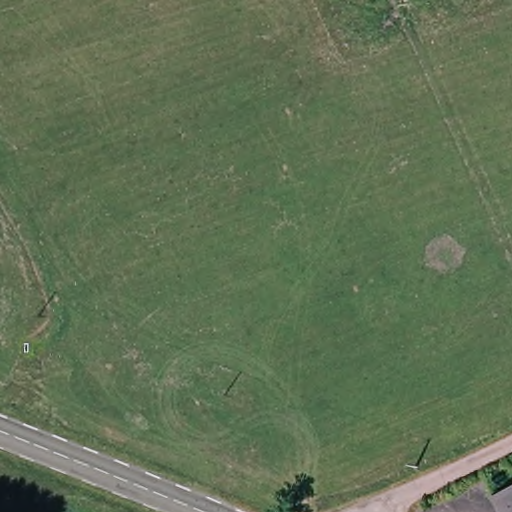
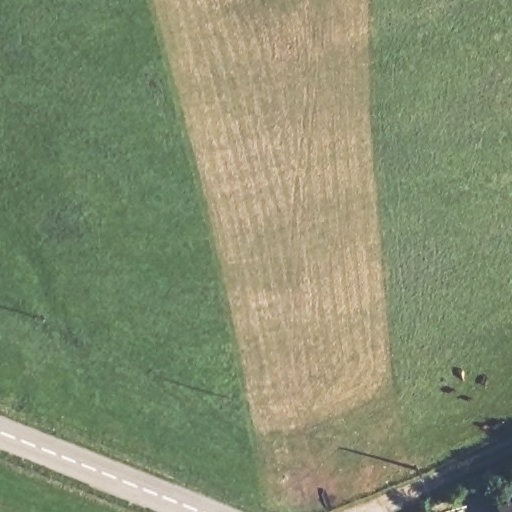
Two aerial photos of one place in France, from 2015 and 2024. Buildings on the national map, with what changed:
unchanged [(512,495),(512,512),(502,512),(498,502),(512,495)]

